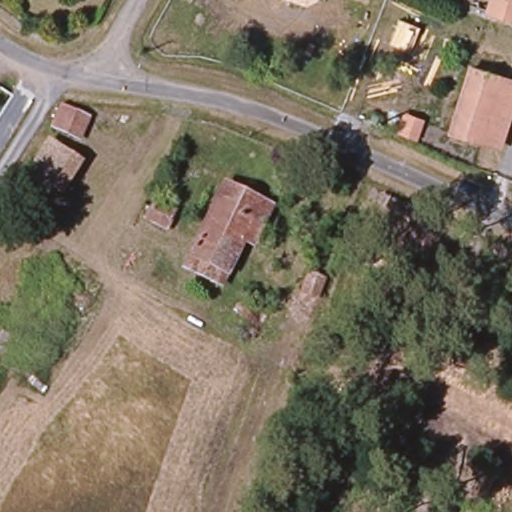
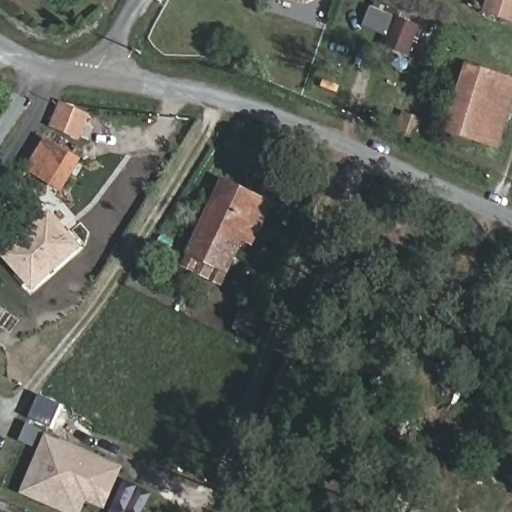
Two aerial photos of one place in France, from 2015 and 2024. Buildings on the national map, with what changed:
unchanged [(307,7),(284,0),(316,0),(307,7)]
unchanged [(480,11),(483,0),(512,0),(512,21),(480,11)]
new [(400,19),(420,27),(410,52),(390,44),(400,19)]
unchanged [(471,72),(500,81),(480,145),(451,136),(471,72)]
unchanged [(500,81),(512,85),(512,111),(500,151),(480,145),(500,81)]
unchanged [(89,119),(79,140),(51,127),(61,108),(89,119)]
unchanged [(82,165),(65,196),(29,173),(47,142),(82,165)]
unchanged [(273,207),(256,245),(245,239),(223,287),(185,267),(224,184),(273,207)]
new [(84,249),(35,292),(3,256),(51,211),(84,249)]
demolished [(325,282),(311,318),(295,313),(308,276),(325,282)]
demolished [(4,365),(0,362),(0,330),(17,341),(4,365)]
new [(87,503),(83,512),(60,512),(20,494),(46,435),(123,468),(106,511),(87,503)]

